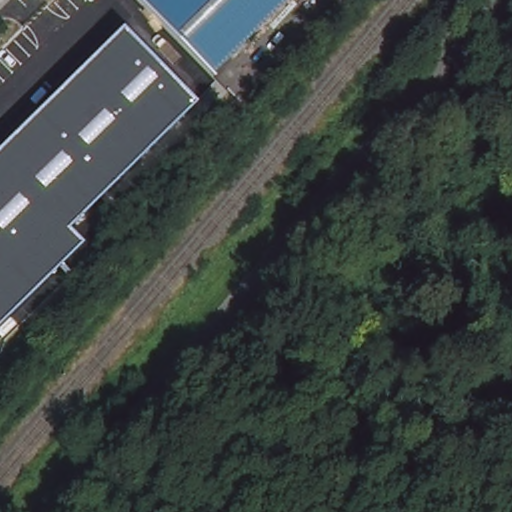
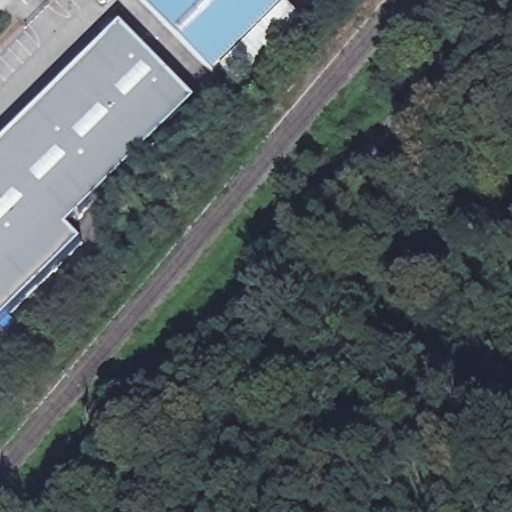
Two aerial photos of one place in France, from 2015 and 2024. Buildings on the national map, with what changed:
unchanged [(219,71),(146,0),(291,0),(219,71)]
unchanged [(65,229),(80,243),(0,320),(0,145),(120,27),(193,103),(65,229)]

